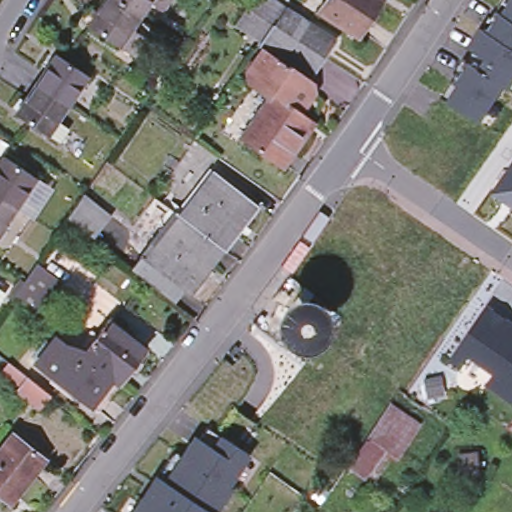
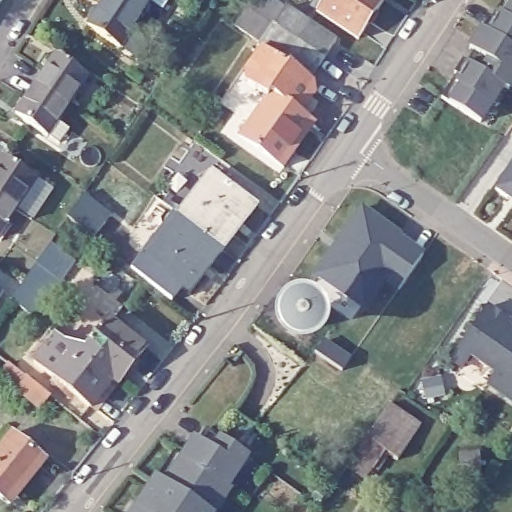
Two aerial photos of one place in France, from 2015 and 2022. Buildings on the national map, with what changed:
unchanged [(89,26),(106,0),(113,0),(140,17),(120,47),(89,26)]
unchanged [(113,0),(151,0),(140,17),(113,0)]
unchanged [(324,0),(380,0),(356,36),(317,10),(324,0)]
unchanged [(491,19),(495,12),(492,10),(499,0),(512,0),(512,47),(480,27),(487,16),(491,19)]
unchanged [(253,50),(260,40),(235,24),(247,7),(272,24),(273,24),(285,7),(306,21),(336,41),(325,59),(306,86),(257,53),(253,50)]
unchanged [(475,44),(471,40),(480,27),(512,47),(512,80),(507,89),(501,85),(464,61),(475,44)]
unchanged [(45,67),(40,65),(46,55),(51,59),(55,53),(87,74),(67,105),(35,84),(45,67)]
unchanged [(310,89),(313,99),(300,116),(268,94),(263,102),(244,88),(240,77),(257,53),(306,86),(310,89)]
unchanged [(452,82),(456,75),(452,72),(460,59),(464,61),(501,85),(478,121),(438,98),(450,80),(452,82)]
unchanged [(16,114),(18,110),(13,107),(18,99),(24,101),(35,84),(67,105),(48,135),(16,114)]
unchanged [(263,102),(268,94),(300,116),(308,121),(292,146),(294,149),(282,166),(238,135),(258,109),(263,102)]
unchanged [(1,162),(4,158),(35,178),(15,209),(0,199),(0,161),(1,162)]
unchanged [(512,204),(493,191),(512,161),(512,204)]
unchanged [(172,301),(162,294),(132,271),(143,257),(147,260),(169,230),(162,226),(160,217),(168,208),(180,216),(212,171),(255,202),(223,247),(201,277),(190,292),(183,286),(172,301)]
unchanged [(93,240),(65,217),(82,194),(112,214),(93,240)]
unchanged [(15,209),(0,233),(0,199),(15,209)]
new [(336,242),(360,207),(397,233),(395,235),(421,253),(397,288),(382,278),(362,307),(314,273),(332,249),(336,242)]
unchanged [(35,315),(10,299),(23,280),(33,265),(58,281),(35,315)]
unchanged [(312,294),(310,297),(309,297),(305,295),(302,295),(298,295),(305,287),(312,294)]
unchanged [(512,323),(512,403),(490,390),(495,375),(471,356),(462,369),(450,362),(489,308),(512,323)]
unchanged [(117,384),(81,355),(109,320),(145,348),(117,384)]
unchanged [(95,412),(34,365),(55,335),(81,355),(117,384),(95,412)]
unchanged [(38,407),(16,390),(25,377),(48,395),(38,407)]
unchanged [(421,423),(419,426),(399,457),(387,450),(375,467),(350,462),(391,403),(421,423)]
unchanged [(0,497),(0,450),(12,434),(43,458),(8,504),(0,497)]
unchanged [(157,477),(165,483),(195,438),(208,447),(217,437),(247,460),(212,512),(133,512),(157,477)]

